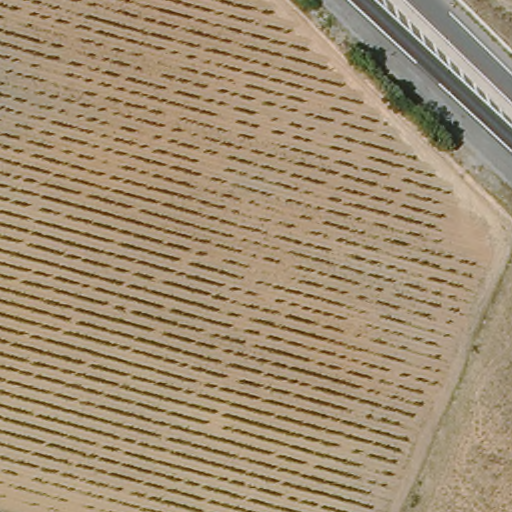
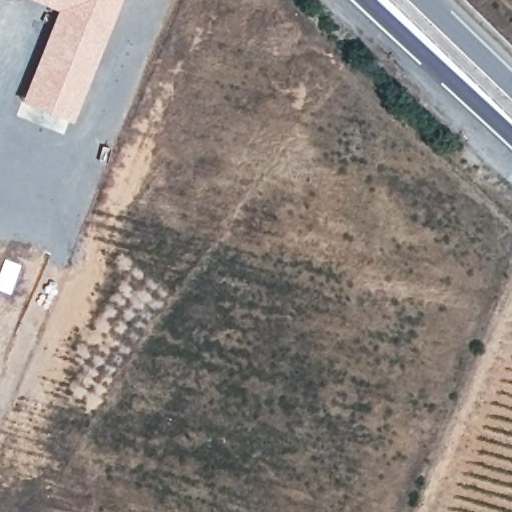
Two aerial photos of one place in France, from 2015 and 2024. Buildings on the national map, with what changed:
new [(19,99),(55,9),(32,0),(120,0),(71,120),(19,99)]

